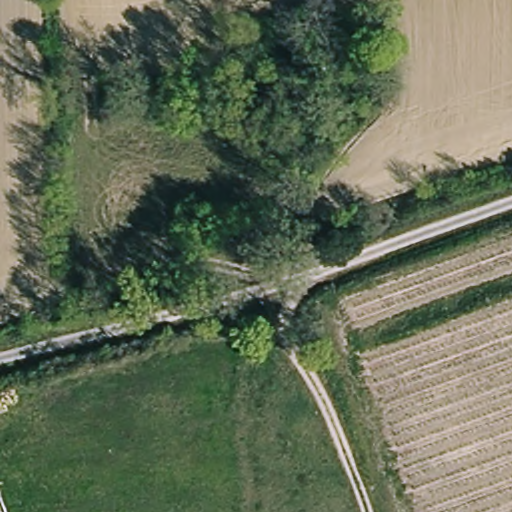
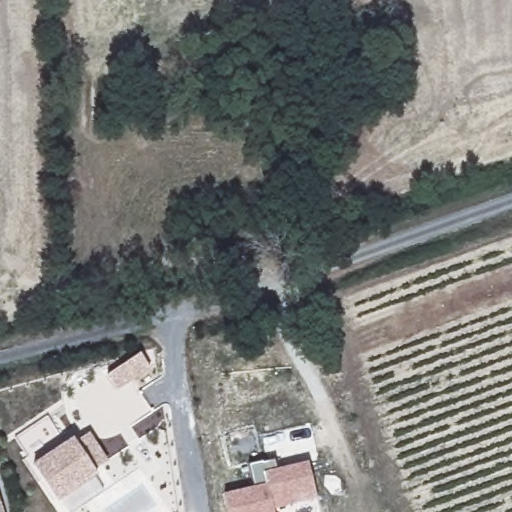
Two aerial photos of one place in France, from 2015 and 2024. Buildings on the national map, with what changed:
new [(107,377),(140,353),(151,368),(117,391),(107,377)]
new [(109,461),(95,471),(98,475),(59,502),(33,465),(73,438),(76,442),(90,432),(109,461)]
new [(224,494),(255,487),(250,466),(262,462),(263,464),(275,460),(278,469),(309,461),(317,499),(273,510),(274,512),(228,512),(224,494)]
new [(0,500),(4,512),(0,512),(0,500)]

